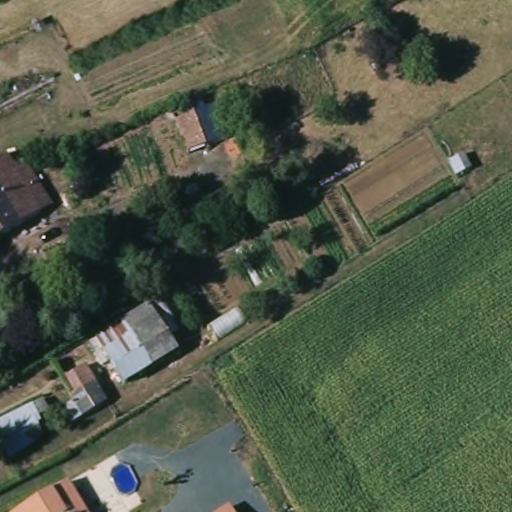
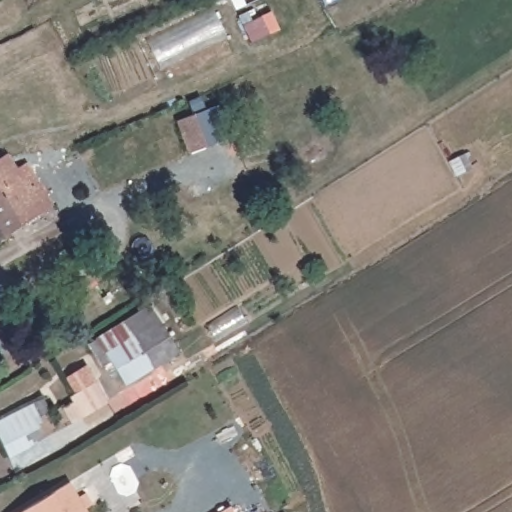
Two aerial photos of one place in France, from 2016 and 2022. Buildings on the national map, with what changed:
unchanged [(196,119),(209,150),(191,157),(179,125),(196,119)]
unchanged [(57,209),(0,247),(0,168),(12,160),(14,165),(23,179),(33,172),(57,209)]
unchanged [(102,343),(154,311),(182,355),(127,386),(102,343)]
unchanged [(71,402),(76,398),(69,380),(96,371),(112,403),(83,426),(71,402)]
unchanged [(0,443),(0,428),(31,409),(47,436),(10,459),(0,443)]
unchanged [(76,486),(91,512),(32,512),(76,486)]
unchanged [(234,510),(236,512),(230,512),(234,510)]

